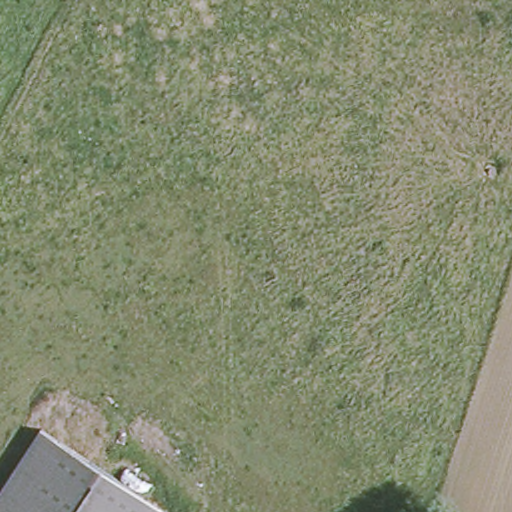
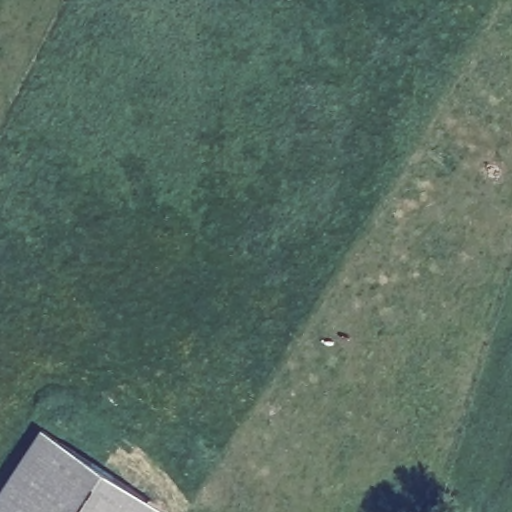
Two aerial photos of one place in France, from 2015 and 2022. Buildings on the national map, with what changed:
unchanged [(121,512),(0,512),(0,468),(30,422),(135,490),(121,512)]
unchanged [(149,512),(121,512),(135,490),(155,503),(149,512)]

